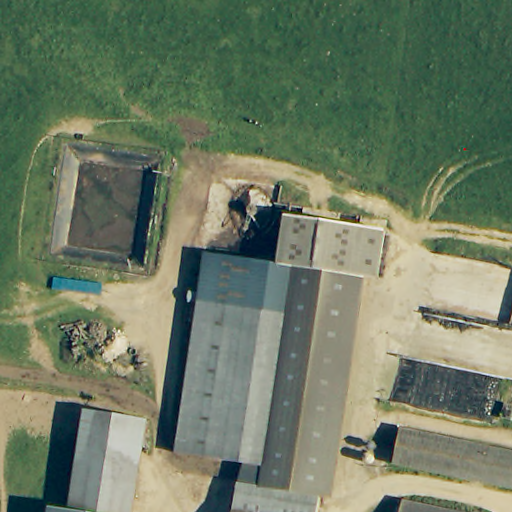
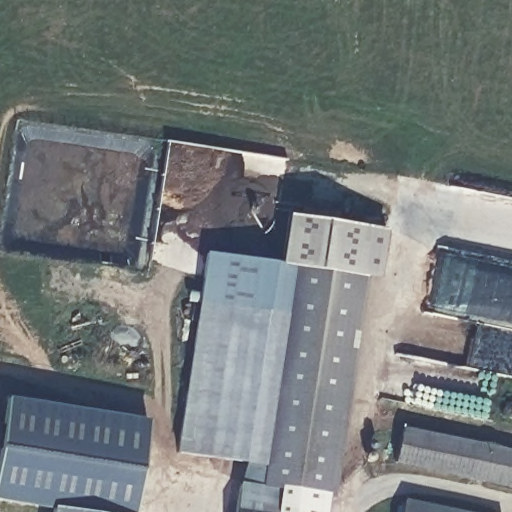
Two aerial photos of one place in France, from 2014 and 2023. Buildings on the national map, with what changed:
unchanged [(275,264),(281,214),(352,223),(376,227),(370,275),(347,272),(345,272),(323,446),(317,492),(239,482),(241,465),(241,463),(222,460),(175,454),(180,420),(201,255),(275,264)]
new [(52,501),(51,508),(0,499),(0,441),(6,397),(87,411),(71,504),(52,501)]
unchanged [(71,504),(88,404),(150,415),(133,512),(118,512),(71,504)]
unchanged [(406,421),(407,421),(512,446),(512,484),(395,458),(400,421),(406,421)]
unchanged [(317,492),(315,512),(235,512),(239,482),(317,492)]
unchanged [(499,512),(404,512),(407,492),(499,512)]
unchanged [(52,501),(71,504),(118,512),(51,512),(52,501)]

